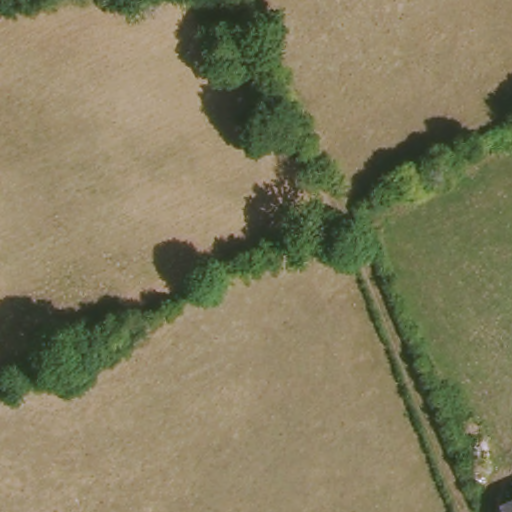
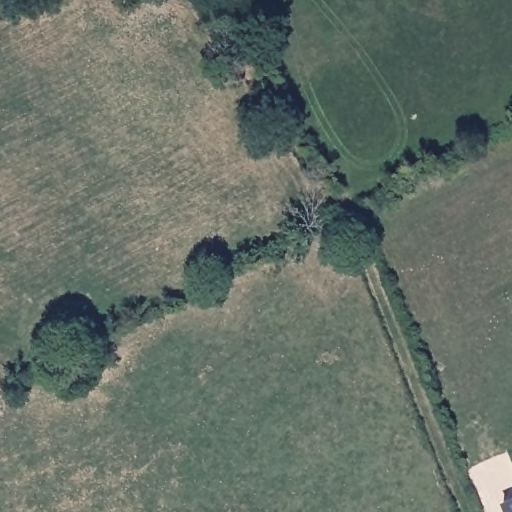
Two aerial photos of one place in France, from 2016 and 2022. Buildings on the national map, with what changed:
unchanged [(512,500),(512,512),(501,512),(499,507),(512,500)]

